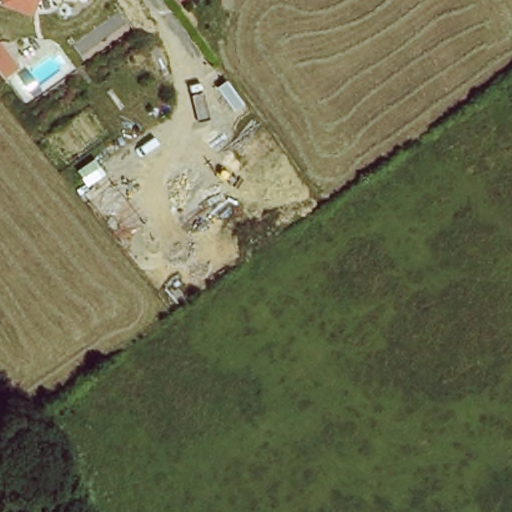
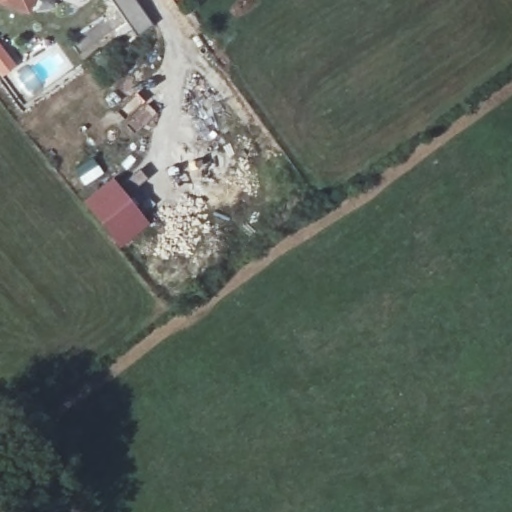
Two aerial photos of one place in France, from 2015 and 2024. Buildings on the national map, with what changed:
unchanged [(1,0),(33,0),(29,10),(0,1),(1,0)]
new [(117,246),(81,201),(110,178),(146,222),(117,246)]

